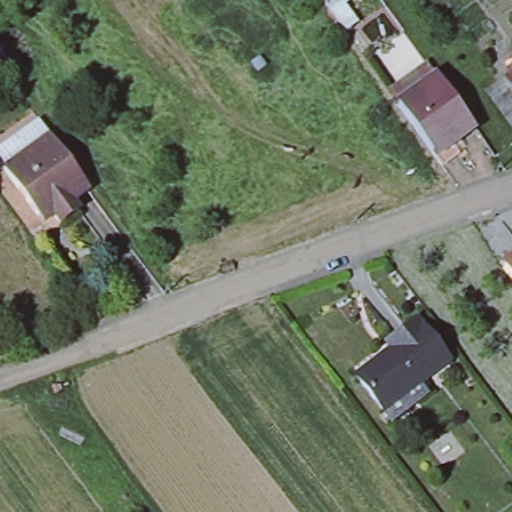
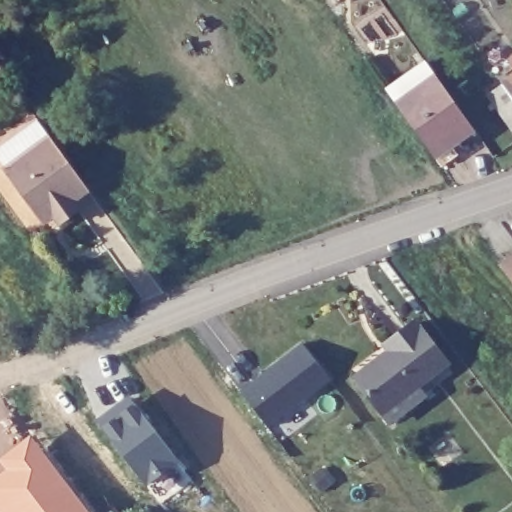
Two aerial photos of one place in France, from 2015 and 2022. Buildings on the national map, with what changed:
unchanged [(435,76),(472,128),(456,139),(453,135),(431,152),(396,104),(435,76)]
unchanged [(502,83),(512,77),(512,125),(489,92),(502,83)]
unchanged [(25,198),(0,163),(0,144),(2,142),(36,117),(70,163),(75,170),(59,181),(65,189),(46,203),(41,196),(30,204),(25,198)]
unchanged [(512,251),(512,277),(500,261),(512,251)]
unchanged [(411,323),(442,364),(426,376),(395,335),(411,323)]
unchanged [(353,377),(369,365),(387,351),(382,345),(395,335),(426,376),(415,385),(421,394),(402,408),(386,420),(380,411),(353,377)]
new [(301,345),(330,381),(270,428),(242,391),(301,345)]
new [(128,398),(178,461),(145,485),(97,422),(128,398)]
new [(1,459),(30,439),(84,512),(0,512),(0,477),(8,470),(1,459)]
new [(320,472),(330,485),(318,494),(307,481),(320,472)]

